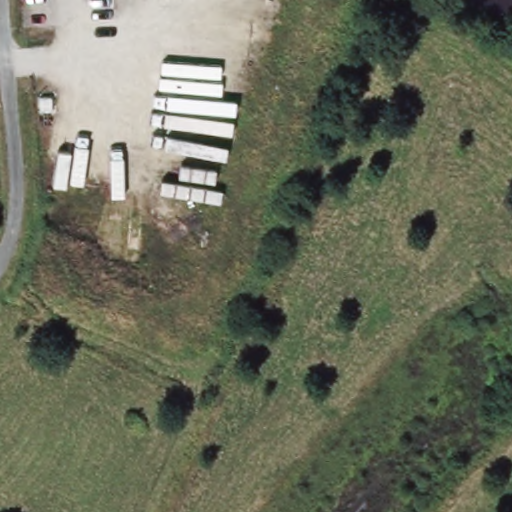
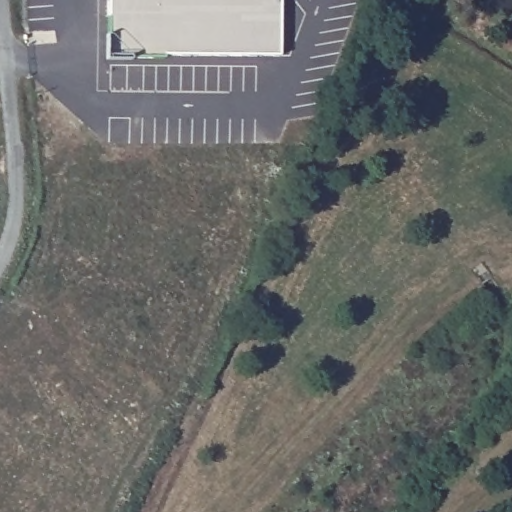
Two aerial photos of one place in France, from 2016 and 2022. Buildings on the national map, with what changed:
new [(280,0),(280,57),(165,56),(165,59),(108,59),(108,17),(108,0),(280,0)]

